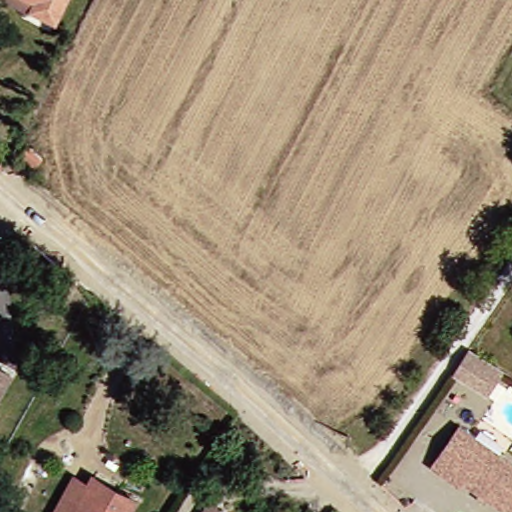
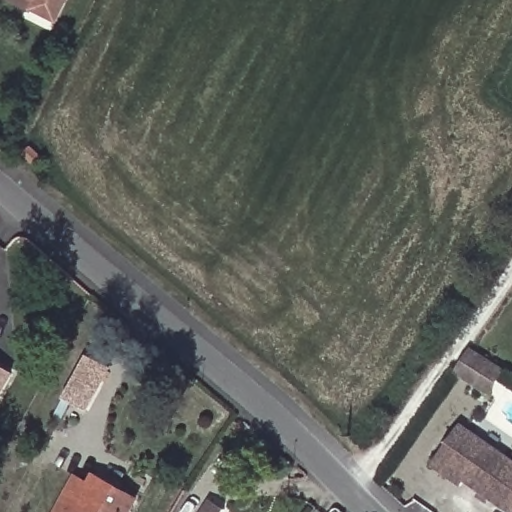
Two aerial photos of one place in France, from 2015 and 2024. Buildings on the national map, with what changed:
unchanged [(62,0),(52,21),(29,10),(28,12),(4,0),(62,0)]
new [(87,356),(109,368),(85,412),(63,399),(87,356)]
unchanged [(484,367),(473,384),(462,377),(472,361),(484,367)]
unchanged [(5,376),(0,384),(0,372),(5,376)]
unchanged [(512,512),(503,512),(458,481),(455,486),(427,466),(456,423),(497,452),(512,463),(512,512)]
unchanged [(124,512),(51,512),(70,477),(84,485),(88,476),(112,489),(131,500),(124,512)]
unchanged [(207,501),(220,510),(218,512),(199,512),(207,501)]

